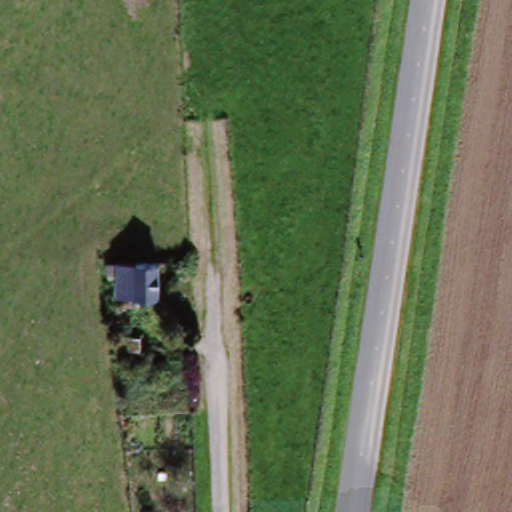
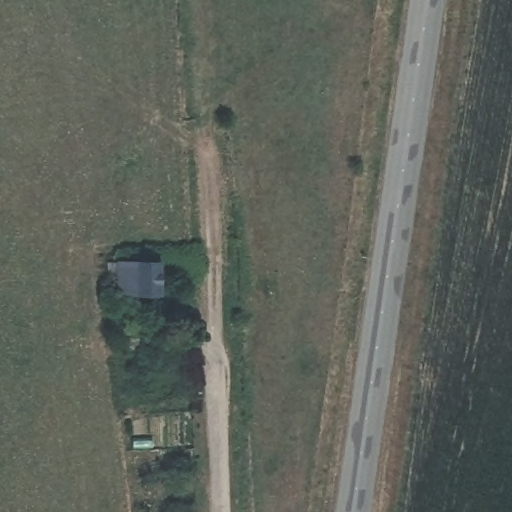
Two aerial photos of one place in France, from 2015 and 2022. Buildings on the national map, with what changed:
unchanged [(157,268),(158,299),(120,300),(119,279),(109,279),(109,268),(157,268)]
unchanged [(135,335),(136,345),(115,346),(115,336),(135,335)]

